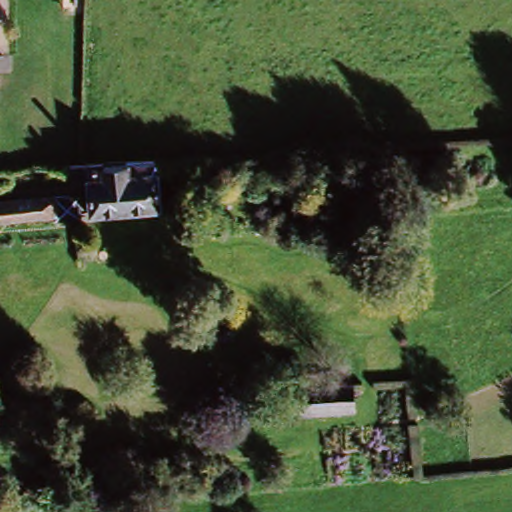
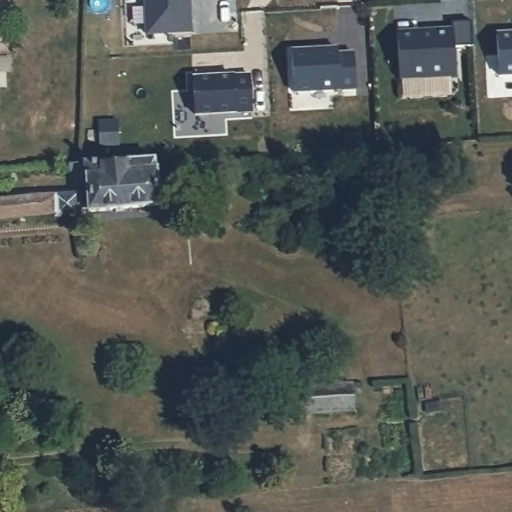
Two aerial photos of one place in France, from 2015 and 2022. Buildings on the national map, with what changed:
new [(146,33),(144,0),(190,0),(192,31),(146,33)]
new [(451,28),(450,19),(470,18),(473,44),(455,44),(457,74),(399,76),(396,29),(451,28)]
new [(512,31),(512,75),(500,75),(497,32),(512,31)]
new [(337,45),(337,50),(355,51),(356,87),(340,87),(341,90),(294,91),(291,49),(337,45)]
new [(234,74),(250,74),(252,108),(236,109),(237,112),(195,114),(192,77),(234,74)]
demolished [(512,75),(512,112),(502,112),(497,75),(512,75)]
unchanged [(95,210),(92,178),(75,179),(73,165),(91,165),(111,163),(160,158),(160,160),(160,164),(162,205),(95,210)]
unchanged [(55,217),(55,214),(0,218),(0,198),(75,194),(77,216),(55,217)]
unchanged [(295,413),(292,389),(350,382),(352,410),(295,413)]

